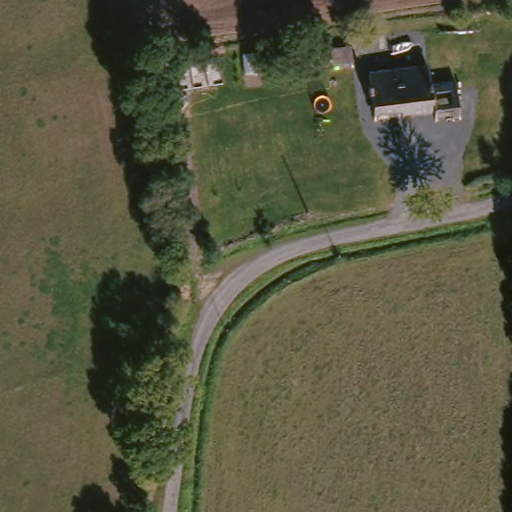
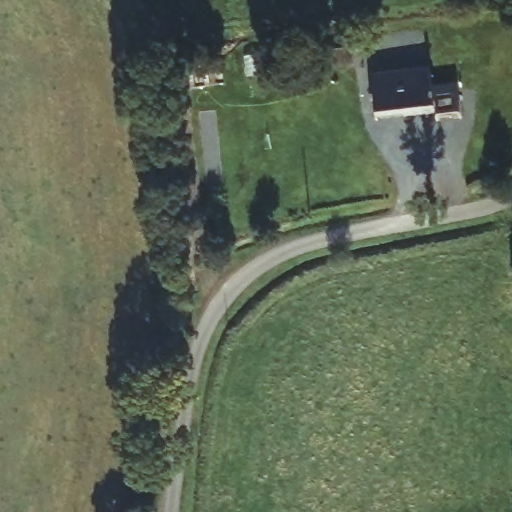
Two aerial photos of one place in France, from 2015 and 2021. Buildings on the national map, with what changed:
unchanged [(326,60),(346,57),(349,70),(329,73),(326,60)]
unchanged [(416,77),(439,75),(446,110),(423,113),(418,105),(367,114),(354,81),(359,80),(358,74),(412,62),(416,77)]

